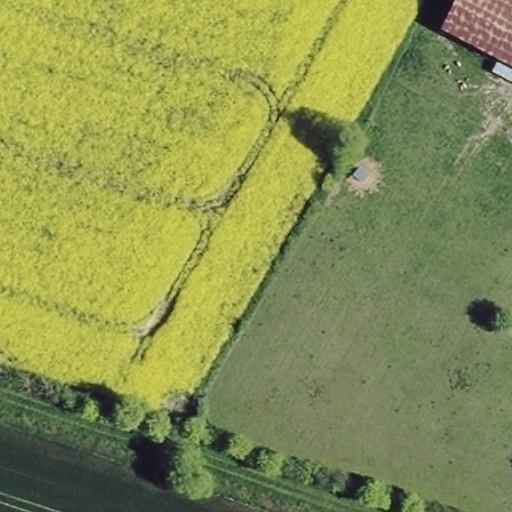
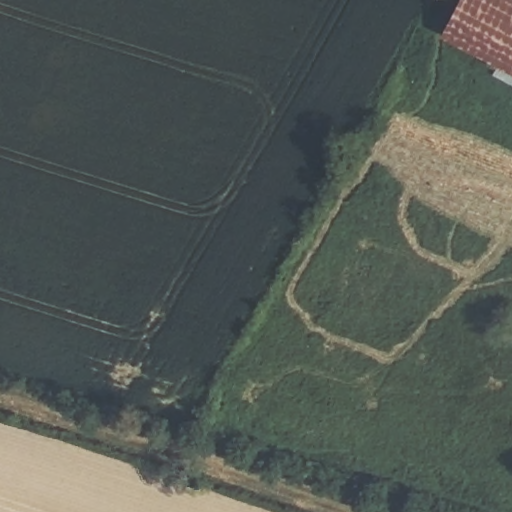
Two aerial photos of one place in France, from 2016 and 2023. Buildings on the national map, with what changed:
unchanged [(455,0),(502,0),(512,5),(512,60),(440,25),(455,0)]

